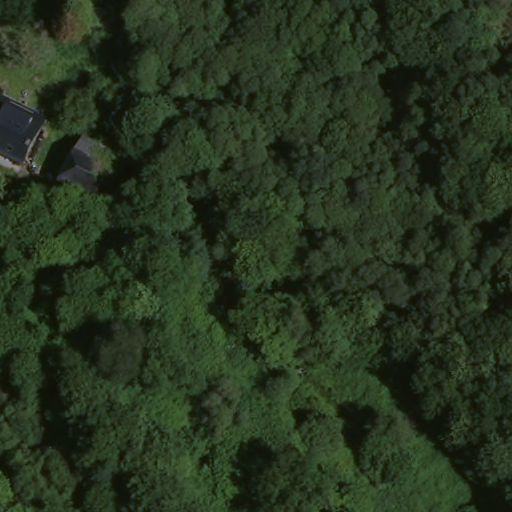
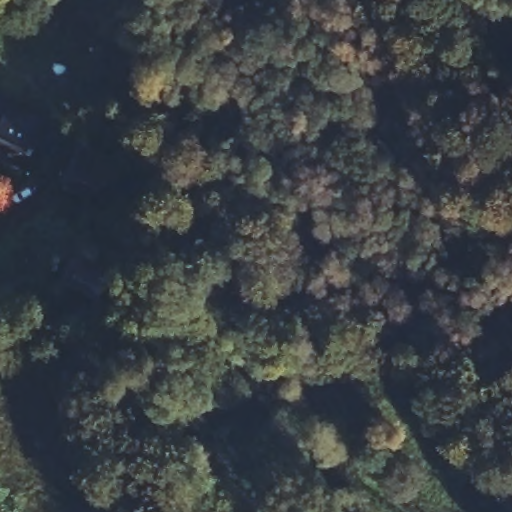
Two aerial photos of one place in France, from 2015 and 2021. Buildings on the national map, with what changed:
unchanged [(46,121),(26,169),(0,159),(0,103),(46,121)]
unchanged [(96,213),(59,193),(86,146),(123,167),(96,213)]

